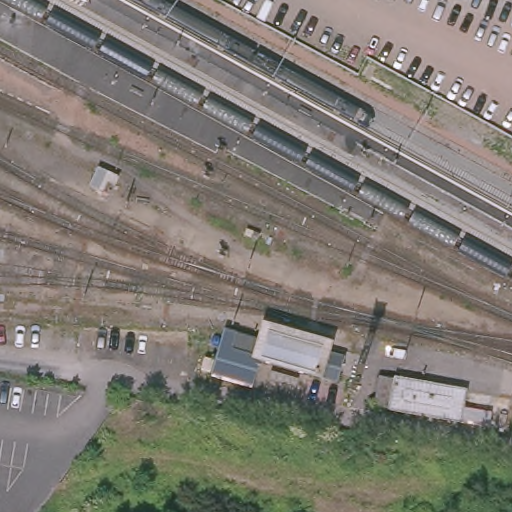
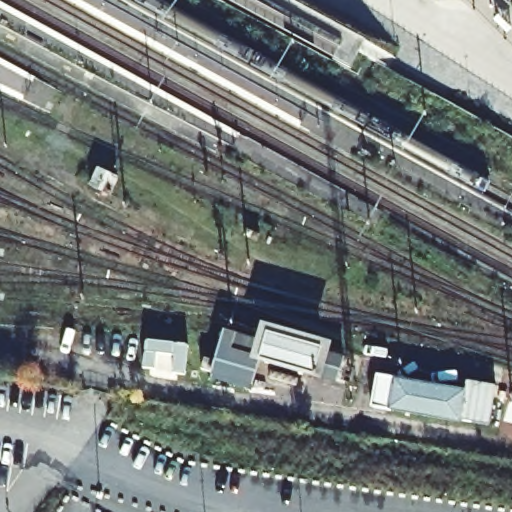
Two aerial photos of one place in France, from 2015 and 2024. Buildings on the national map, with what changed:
unchanged [(253,340),(262,322),(336,343),(326,373),(271,363),(264,387),(210,377),(220,331),(253,340)]
unchanged [(472,386),(464,425),(375,411),(380,375),(472,386)]

